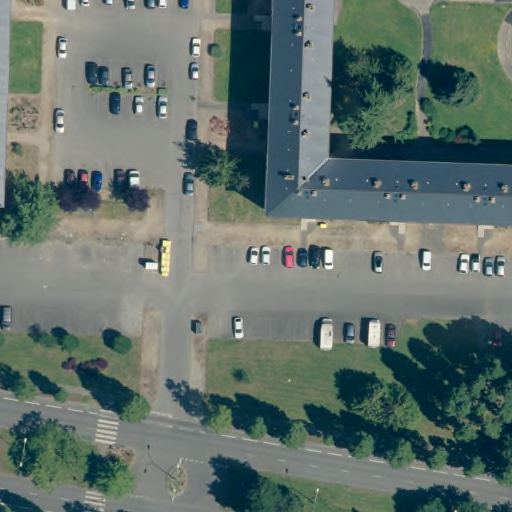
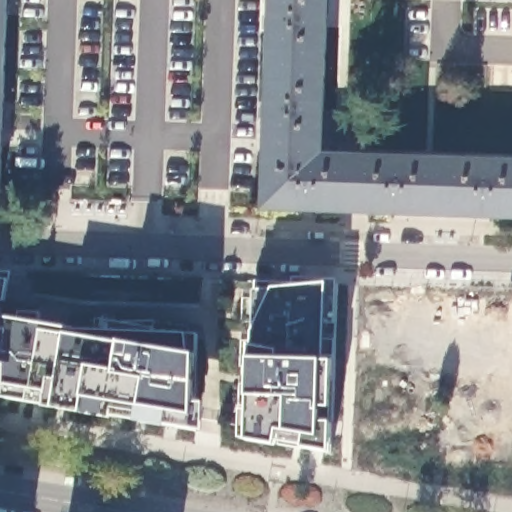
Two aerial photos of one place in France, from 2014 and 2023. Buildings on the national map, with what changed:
unchanged [(0,57),(0,0),(7,0),(5,58),(0,57)]
unchanged [(270,66),(273,0),(327,0),(324,69),(270,66)]
unchanged [(2,147),(0,147),(0,57),(5,58),(2,147)]
unchanged [(324,69),(321,143),(304,143),(303,159),(267,157),(270,66),(324,69)]
unchanged [(0,201),(0,147),(2,147),(0,201)]
unchanged [(303,159),(329,159),(354,160),(353,214),(264,210),(265,195),(267,157),(303,159)]
unchanged [(354,160),(443,164),(441,217),(369,214),(353,214),(354,160)]
unchanged [(443,164),(448,164),(512,166),(512,219),(488,219),(441,217),(443,164)]
new [(279,446),(250,442),(252,399),(253,361),(254,349),(275,290),(328,285),(325,364),(336,364),(333,409),(332,453),(305,449),(307,437),(289,434),(281,432),(279,446)]
new [(0,319),(0,301),(1,305),(0,319)]
new [(79,332),(120,333),(189,335),(192,357),(199,358),(196,417),(86,399),(84,414),(55,409),(58,393),(9,386),(7,396),(0,394),(0,319),(45,326),(79,332)]

